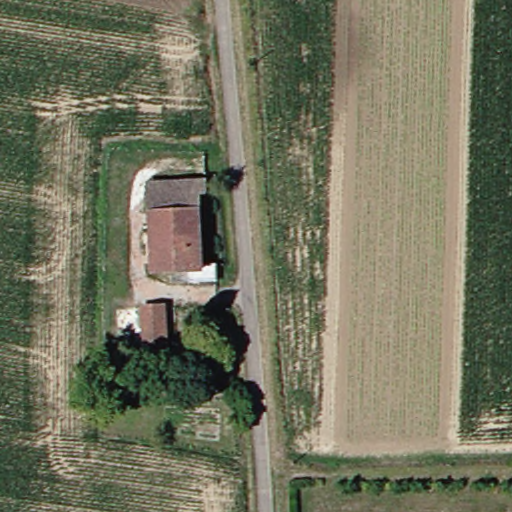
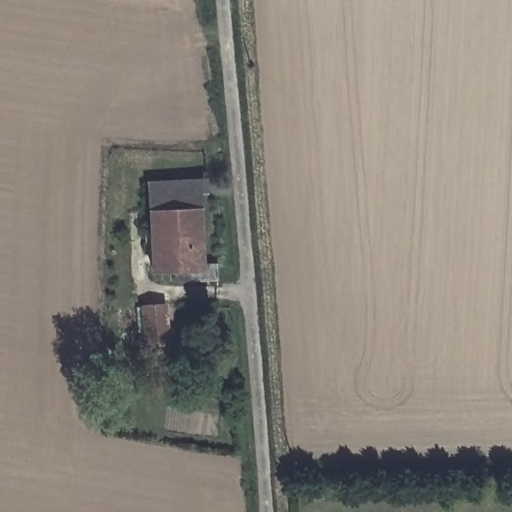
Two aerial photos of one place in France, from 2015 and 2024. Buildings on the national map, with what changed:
unchanged [(207,265),(208,281),(167,282),(167,274),(147,275),(144,184),(192,182),(195,266),(207,265)]
unchanged [(164,312),(167,351),(146,352),(143,312),(164,312)]

